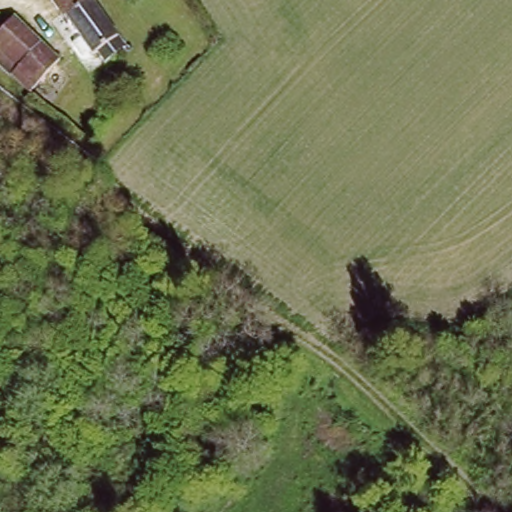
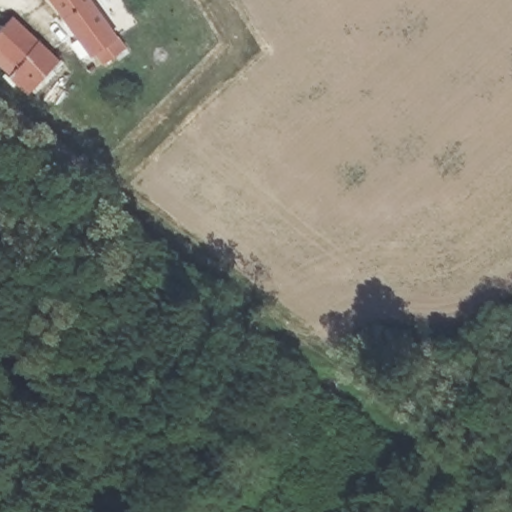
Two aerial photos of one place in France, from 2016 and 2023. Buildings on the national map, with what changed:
unchanged [(114,59),(110,63),(102,53),(97,56),(70,20),(54,0),(95,0),(95,1),(130,46),(114,59)]
unchanged [(3,52),(0,49),(0,30),(12,16),(58,62),(28,91),(10,71),(15,65),(3,52)]

